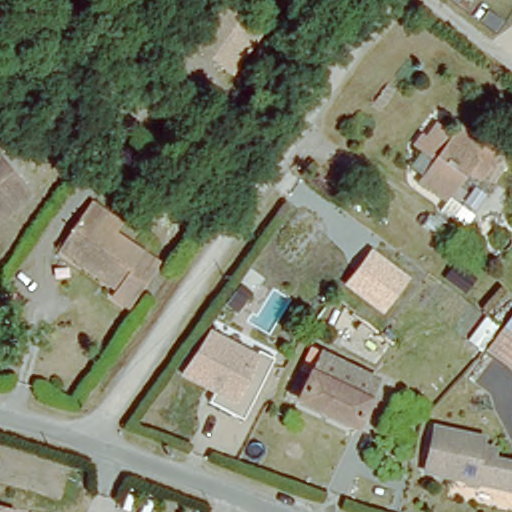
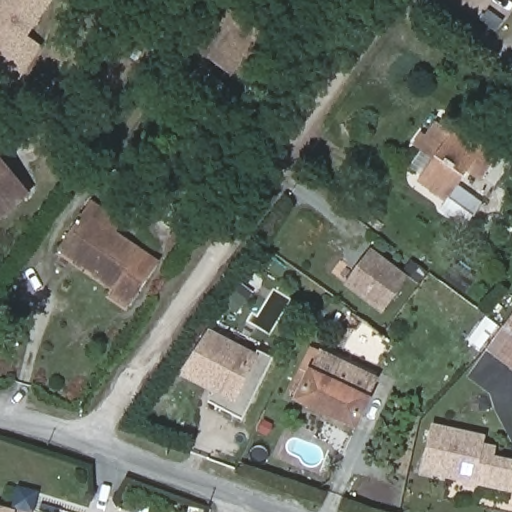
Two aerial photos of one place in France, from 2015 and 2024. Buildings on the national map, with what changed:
new [(22,39),(37,50),(15,81),(0,70),(0,0),(43,0),(48,4),(22,39)]
unchanged [(57,0),(61,0),(106,27),(96,40),(50,10),(57,0)]
unchanged [(258,37),(231,77),(188,49),(214,9),(258,37)]
unchanged [(443,126),(450,131),(451,130),(455,124),(498,155),(490,166),(481,179),(466,169),(444,199),(415,180),(430,159),(409,143),(416,132),(425,138),(436,121),(443,126)]
unchanged [(0,216),(0,163),(25,194),(0,216)]
unchanged [(65,245),(87,206),(103,215),(110,219),(108,228),(108,229),(114,233),(123,239),(156,260),(150,272),(147,276),(145,281),(141,287),(132,304),(131,307),(106,293),(110,283),(61,254),(65,245)]
unchanged [(478,275),(457,261),(467,246),(488,260),(478,275)]
unchanged [(382,314),(344,285),(371,249),(409,278),(382,314)]
unchanged [(512,371),(486,352),(512,318),(512,371)]
unchanged [(178,375),(208,330),(256,355),(259,351),(274,358),(242,422),(209,403),(214,393),(178,375)]
unchanged [(313,371),(323,351),(376,377),(368,396),(373,399),(357,432),(292,401),(308,368),(313,371)]
unchanged [(512,464),(512,474),(507,490),(422,467),(434,424),(482,437),(479,445),(492,449),(489,458),(512,464)]

